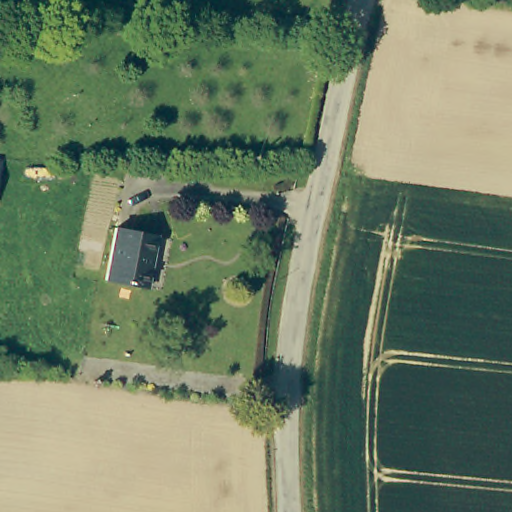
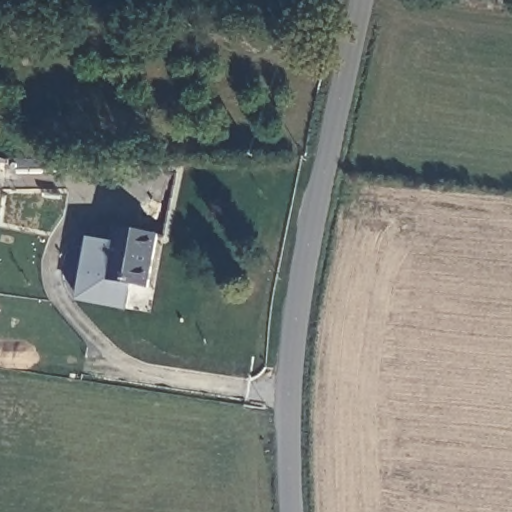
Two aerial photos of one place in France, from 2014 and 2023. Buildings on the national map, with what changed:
unchanged [(3,165),(0,182),(0,164),(3,165)]
unchanged [(157,233),(148,286),(106,279),(116,226),(157,233)]
new [(106,279),(129,283),(125,309),(75,299),(85,236),(113,242),(106,279)]

